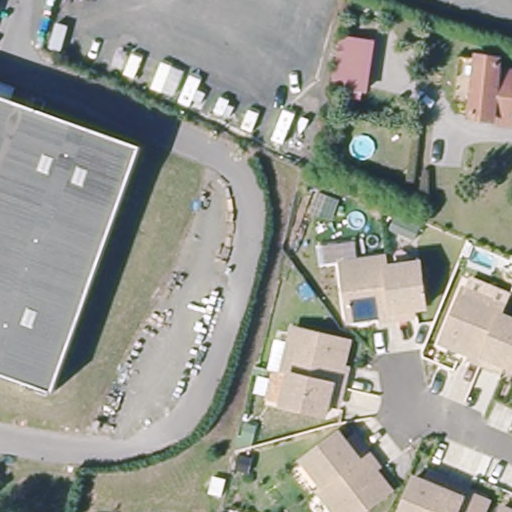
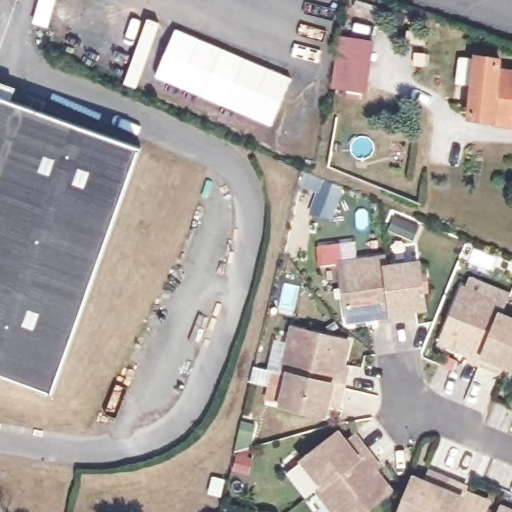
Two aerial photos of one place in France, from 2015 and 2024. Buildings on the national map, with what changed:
new [(147,18),(157,22),(136,87),(123,82),(147,18)]
new [(175,27),(292,77),(271,125),(154,76),(175,27)]
unchanged [(332,88),(341,36),(370,42),(359,93),(332,88)]
unchanged [(498,58),(497,71),(512,73),(512,122),(468,117),(476,56),(498,58)]
unchanged [(0,374),(0,96),(145,150),(55,395),(0,374)]
new [(304,172),(343,187),(331,220),(309,213),(316,193),(299,186),(304,172)]
unchanged [(378,317),(349,321),(341,263),(386,257),(387,267),(394,319),(379,321),(378,317)]
unchanged [(419,263),(425,307),(408,309),(409,317),(394,319),(387,267),(419,263)]
unchanged [(504,312),(501,320),(484,362),(481,368),(466,362),(468,358),(440,346),(463,293),(505,311),(504,312)]
unchanged [(512,325),(512,373),(497,367),(494,374),(481,368),(484,362),(501,320),(512,325)]
unchanged [(293,327),(349,340),(342,370),(347,371),(343,387),(289,374),(282,372),(293,327)]
unchanged [(340,401),(329,398),(325,415),(282,404),(289,374),(343,387),(340,401)]
unchanged [(339,433),(349,446),(358,439),(367,451),(323,485),(304,460),(339,433)]
unchanged [(376,463),(372,466),(391,491),(364,512),(335,512),(319,491),(317,489),(321,486),(323,485),(367,451),(376,463)]
unchanged [(435,479),(439,469),(453,475),(449,485),(438,512),(404,512),(419,473),(435,479)]
unchanged [(449,485),(453,475),(467,480),(465,485),(493,497),(487,512),(438,512),(449,485)]
unchanged [(512,505),(512,512),(502,512),(506,502),(512,505)]

